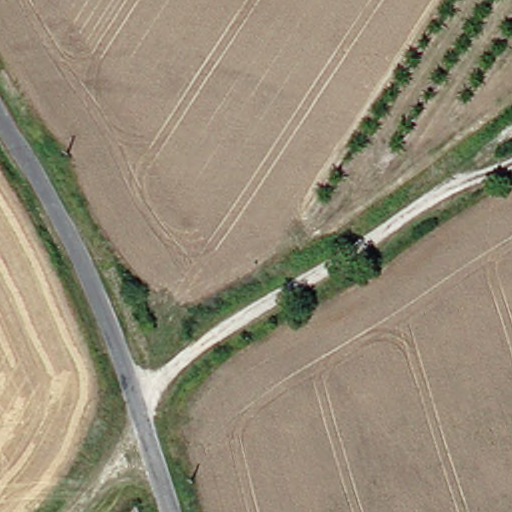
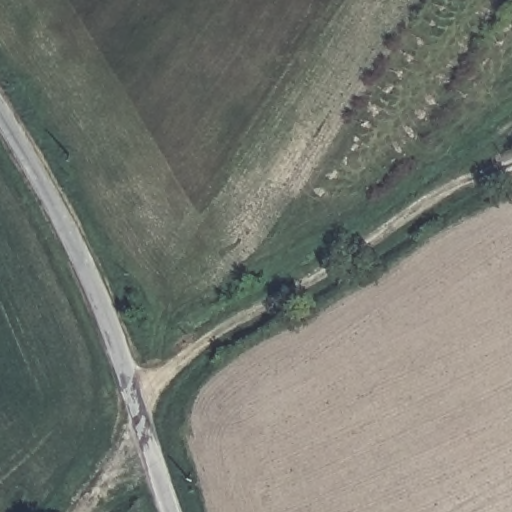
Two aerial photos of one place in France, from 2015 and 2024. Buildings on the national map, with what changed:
[]

